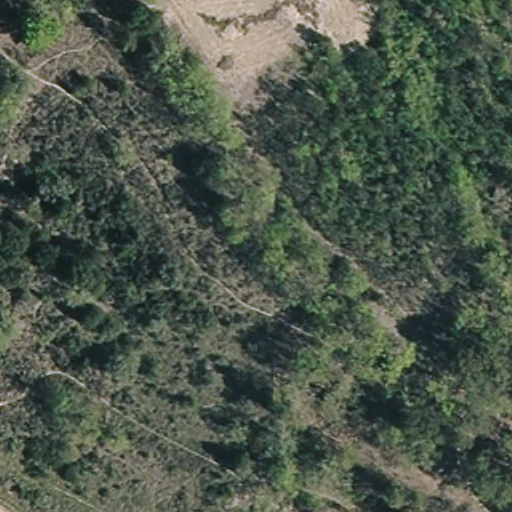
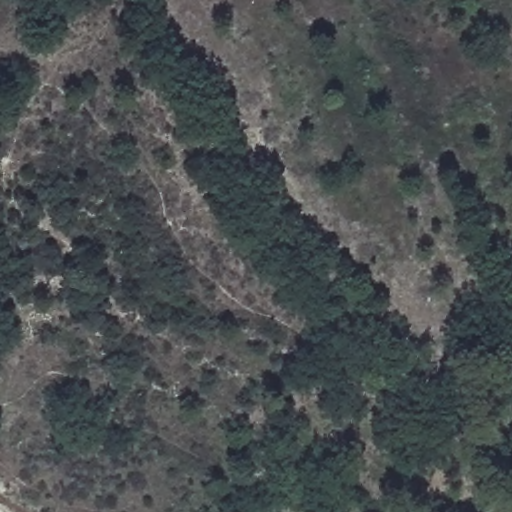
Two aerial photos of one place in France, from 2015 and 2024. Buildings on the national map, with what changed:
[]

